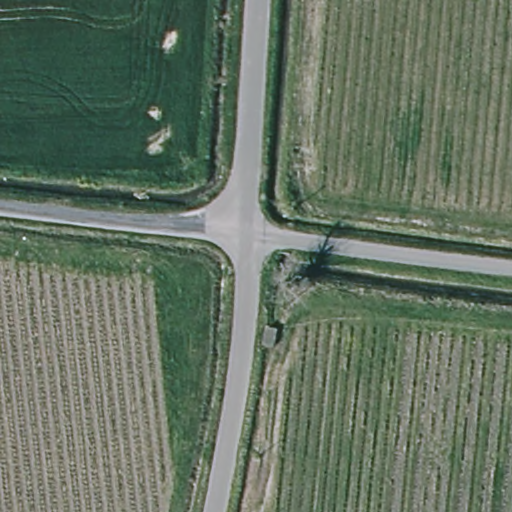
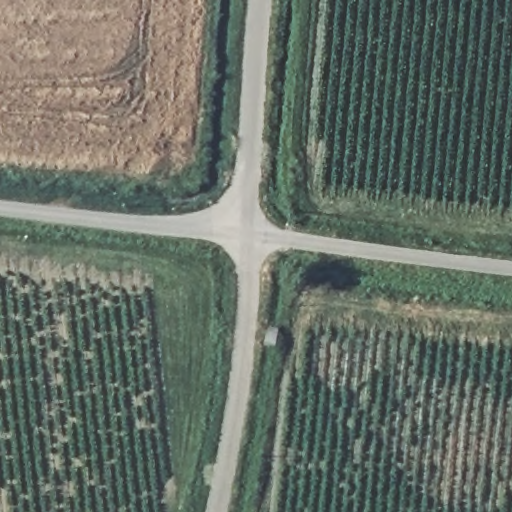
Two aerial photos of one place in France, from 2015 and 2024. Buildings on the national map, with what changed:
unchanged [(267,346),(269,329),(278,330),(276,347),(267,346)]

